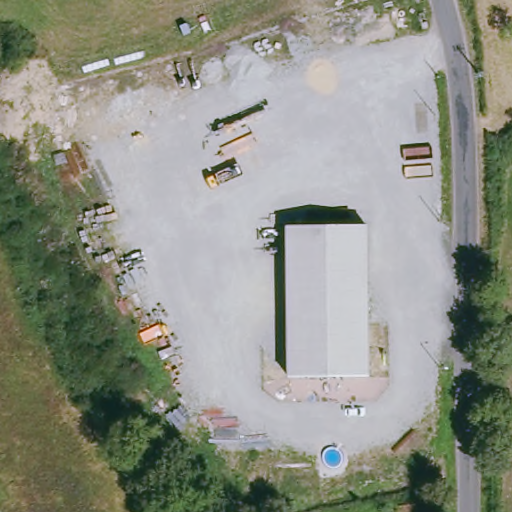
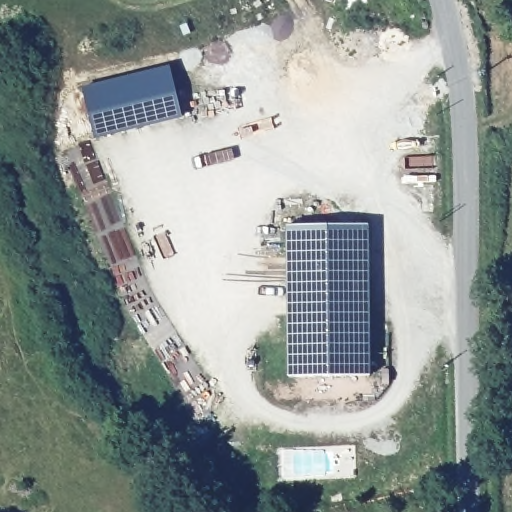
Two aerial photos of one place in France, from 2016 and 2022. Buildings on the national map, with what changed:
demolished [(424,24),(359,40),(350,3),(366,0),(417,0),(424,24)]
new [(95,138),(82,87),(170,67),(182,117),(95,138)]
unchanged [(367,223),(370,373),(288,375),(285,224),(367,223)]

